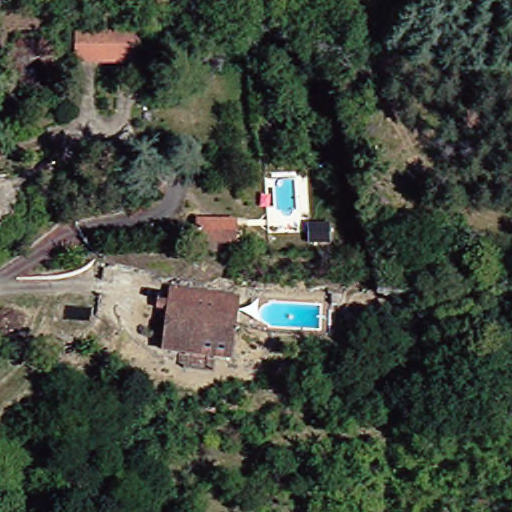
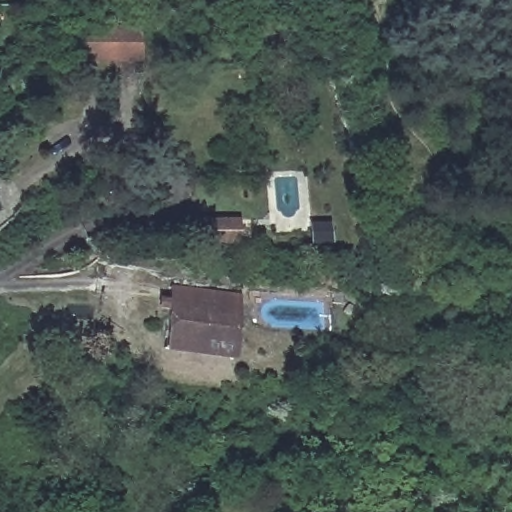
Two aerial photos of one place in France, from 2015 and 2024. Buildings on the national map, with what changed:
unchanged [(132,60),(72,60),(74,29),(134,27),(132,60)]
unchanged [(235,222),(235,244),(199,244),(199,221),(235,222)]
unchanged [(175,369),(176,353),(153,350),(157,311),(149,310),(150,301),(159,302),(160,288),(162,288),(198,294),(230,296),(227,317),(228,317),(222,359),(206,357),(204,372),(175,369)]

